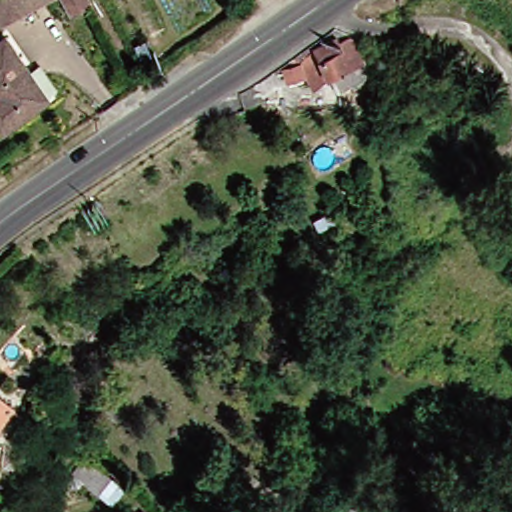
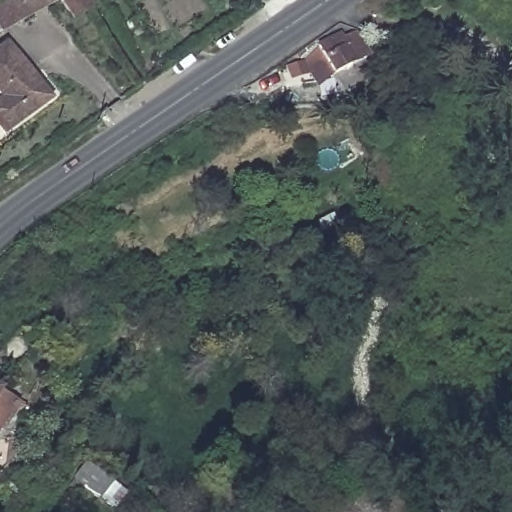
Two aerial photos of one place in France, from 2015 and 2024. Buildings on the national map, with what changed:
unchanged [(0,26),(0,0),(46,0),(0,26)]
unchanged [(81,5),(62,17),(52,0),(78,0),(81,5)]
unchanged [(329,36),(330,40),(339,35),(344,38),(355,60),(354,60),(362,76),(328,93),(319,78),(301,87),(288,62),(305,49),(329,36)]
unchanged [(34,105),(0,131),(0,47),(19,71),(40,101),(34,105)]
unchanged [(0,426),(0,403),(11,410),(0,426)]
unchanged [(114,510),(84,487),(78,494),(68,487),(85,463),(126,494),(114,510)]
unchanged [(416,512),(328,512),(356,473),(416,512)]

